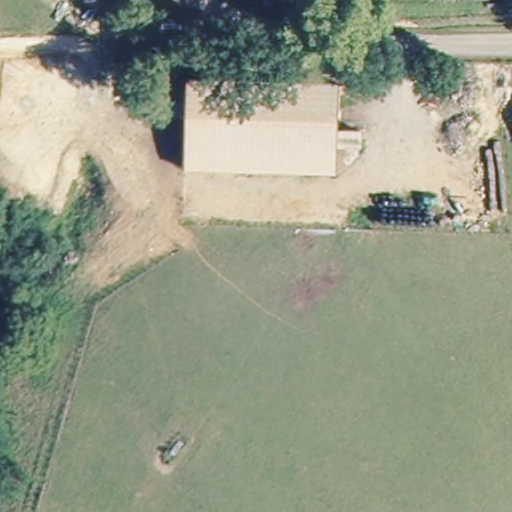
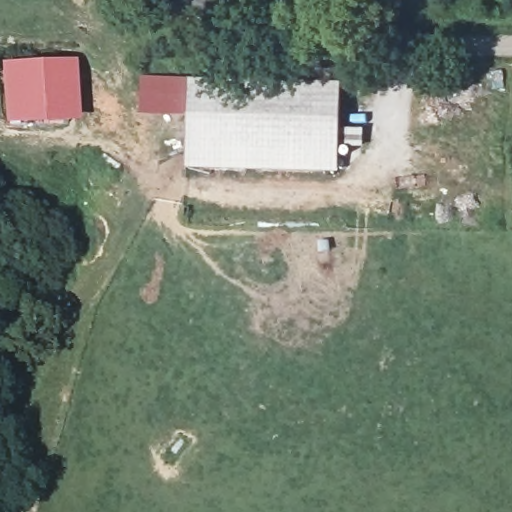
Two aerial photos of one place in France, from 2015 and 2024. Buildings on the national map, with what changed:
new [(0,61),(76,58),(78,123),(2,124),(0,61)]
new [(186,78),(185,117),(140,114),(141,76),(186,78)]
unchanged [(337,83),(336,170),(184,165),(186,78),(337,83)]

